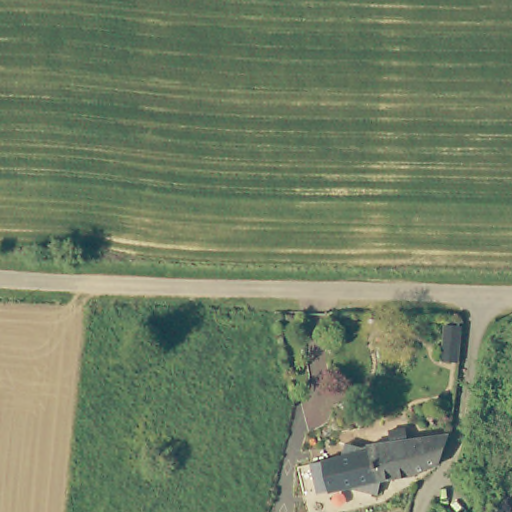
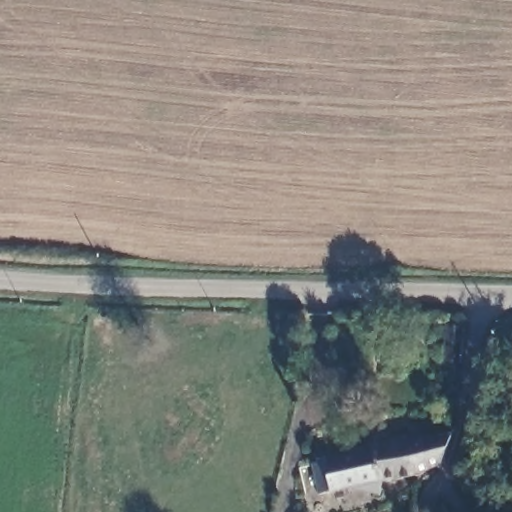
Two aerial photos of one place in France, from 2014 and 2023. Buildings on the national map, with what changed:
unchanged [(445,324),(463,325),(460,363),(443,362),(445,324)]
unchanged [(368,446),(370,446),(368,433),(406,428),(408,441),(450,435),(441,460),(437,465),(403,477),(379,481),(368,446)]
unchanged [(359,453),(366,482),(317,493),(310,465),(359,453)]

